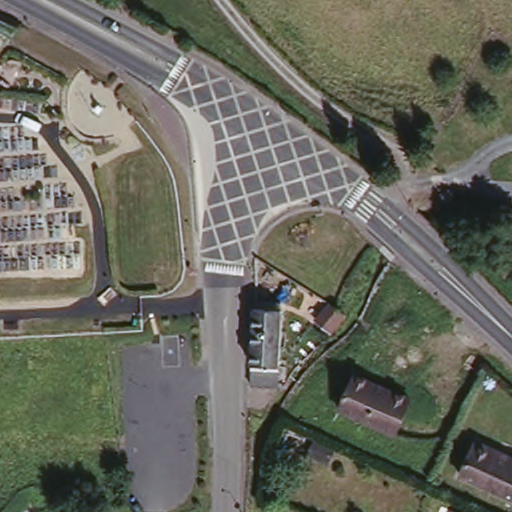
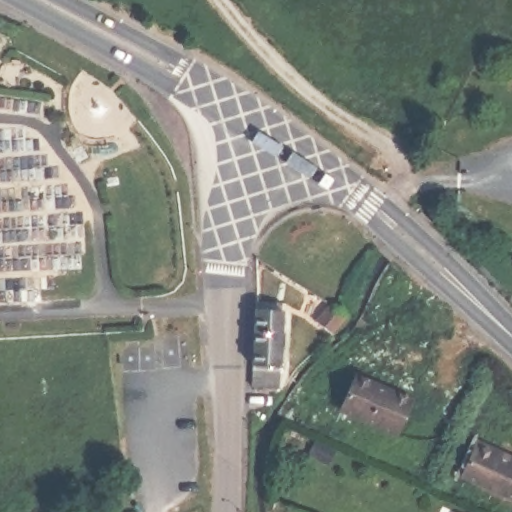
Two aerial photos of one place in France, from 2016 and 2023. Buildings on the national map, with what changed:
unchanged [(251,364),(250,363),(254,310),(254,300),(281,301),(281,311),(277,386),(250,384),(251,364)]
unchanged [(338,328),(333,333),(320,321),(332,305),(347,315),(338,328)]
unchanged [(381,384),(409,395),(407,399),(395,432),(340,409),(353,374),(381,384)]
unchanged [(315,441),(335,451),(327,464),(307,454),(315,441)]
unchanged [(500,453),(512,458),(512,498),(463,479),(476,445),(500,453)]

